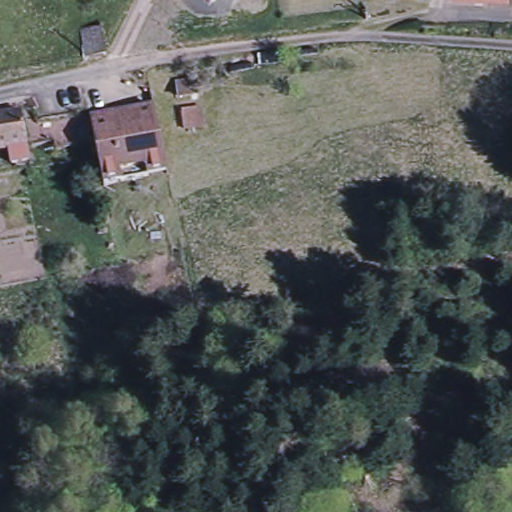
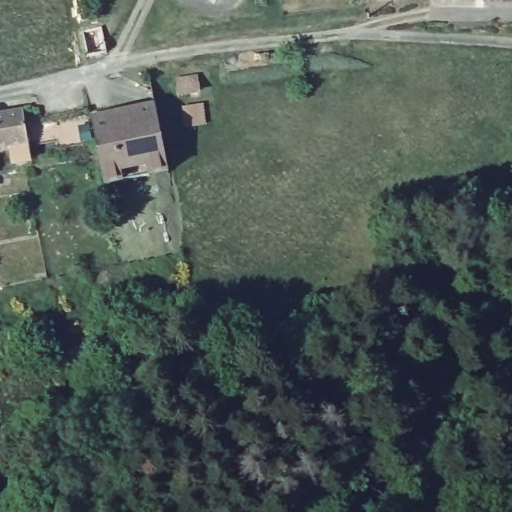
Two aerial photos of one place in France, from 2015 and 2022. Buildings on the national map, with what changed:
unchanged [(102,24),(107,50),(85,54),(82,27),(102,24)]
unchanged [(198,71),(200,87),(180,90),(178,74),(198,71)]
unchanged [(120,115),(119,109),(155,101),(163,138),(170,167),(107,181),(93,120),(120,115)]
unchanged [(22,104),(30,140),(32,152),(15,155),(12,144),(0,146),(0,109),(22,104)]

